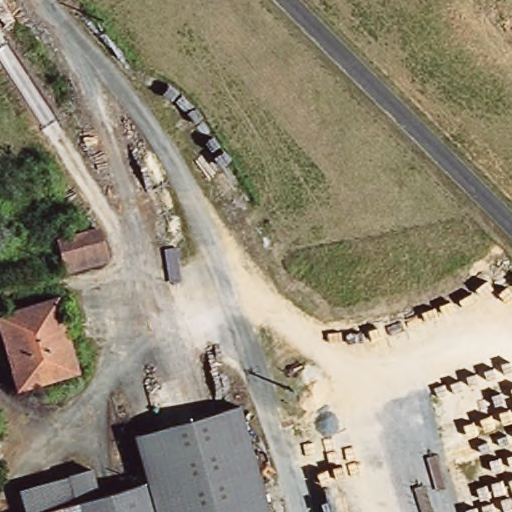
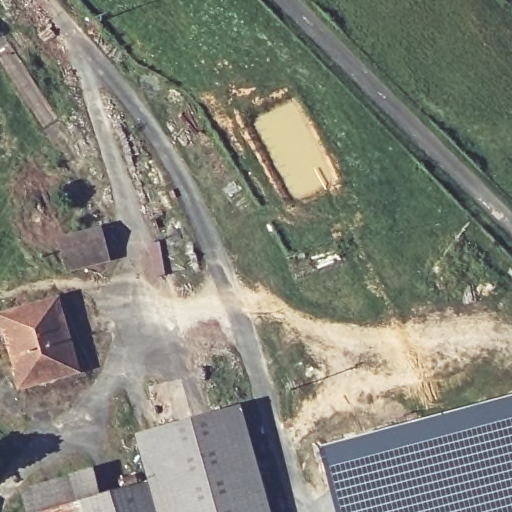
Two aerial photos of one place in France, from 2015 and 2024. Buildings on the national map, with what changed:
unchanged [(57,238),(99,225),(109,258),(67,272),(57,238)]
unchanged [(10,356),(0,326),(0,315),(52,299),(64,338),(10,356)]
unchanged [(75,367),(20,385),(10,356),(64,338),(75,367)]
unchanged [(192,400),(217,392),(252,512),(224,512),(192,400)]
unchanged [(192,400),(224,512),(186,512),(155,410),(192,400)]
new [(512,402),(512,512),(341,512),(325,448),(512,402)]
unchanged [(0,501),(14,497),(61,482),(55,457),(79,451),(86,477),(125,466),(112,422),(155,410),(186,512),(0,512),(0,501)]
unchanged [(14,497),(5,472),(55,457),(61,482),(14,497)]

